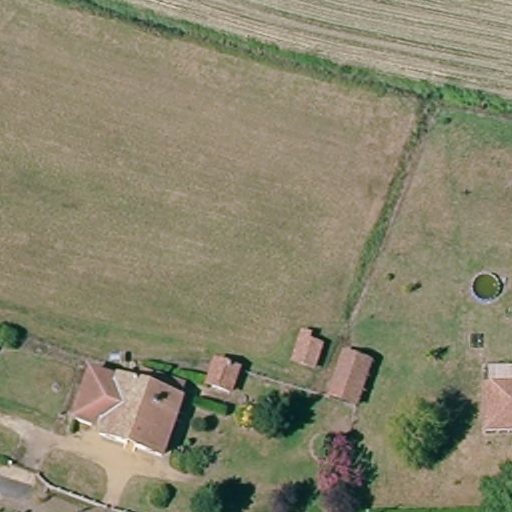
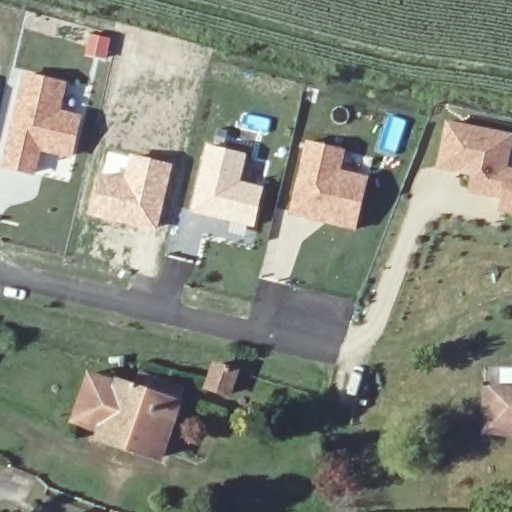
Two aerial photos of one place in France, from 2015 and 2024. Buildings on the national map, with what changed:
new [(89,32),(111,37),(106,59),(83,54),(89,32)]
new [(21,70),(67,81),(60,108),(83,114),(71,159),(42,152),(35,177),(0,168),(0,159),(21,70)]
new [(512,138),(512,153),(510,160),(507,176),(512,177),(512,214),(499,211),(502,195),(495,194),(495,197),(470,191),(473,174),(438,167),(446,125),(502,136),(512,138)]
new [(305,139),(346,149),(342,168),(369,175),(356,232),(286,215),(305,139)]
new [(206,143),(247,153),(241,181),(265,186),(254,229),(189,212),(206,143)]
new [(105,148),(174,163),(156,232),(86,216),(105,148)]
new [(0,223),(0,219),(1,219),(0,223)]
demolished [(322,369),(310,365),(320,335),(328,338),(326,345),(330,346),(322,369)]
demolished [(356,359),(384,368),(370,413),(342,404),(356,359)]
demolished [(252,369),(242,397),(222,390),(232,363),(252,369)]
new [(239,371),(229,399),(209,392),(219,364),(239,371)]
unchanged [(145,390),(151,375),(190,390),(185,405),(189,406),(169,460),(102,434),(105,427),(81,419),(99,373),(145,390)]
unchanged [(486,392),(512,392),(512,436),(485,436),(486,392)]

